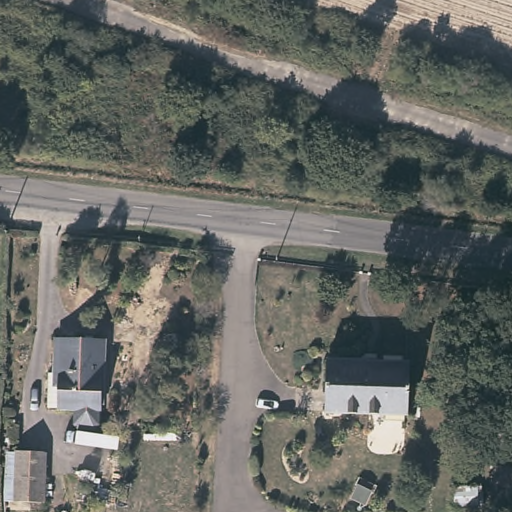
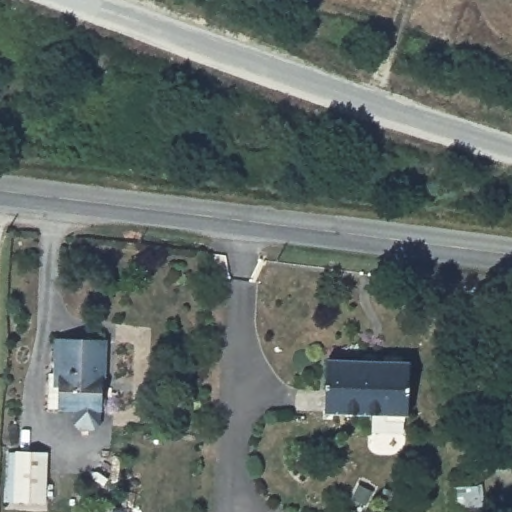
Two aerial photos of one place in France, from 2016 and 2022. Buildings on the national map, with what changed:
unchanged [(113,338),(113,377),(109,377),(109,407),(52,407),(52,370),(59,370),(60,337),(113,338)]
unchanged [(409,359),(407,411),(325,410),(326,357),(409,359)]
unchanged [(9,452),(20,452),(52,451),(52,501),(21,502),(9,502),(9,452)]

